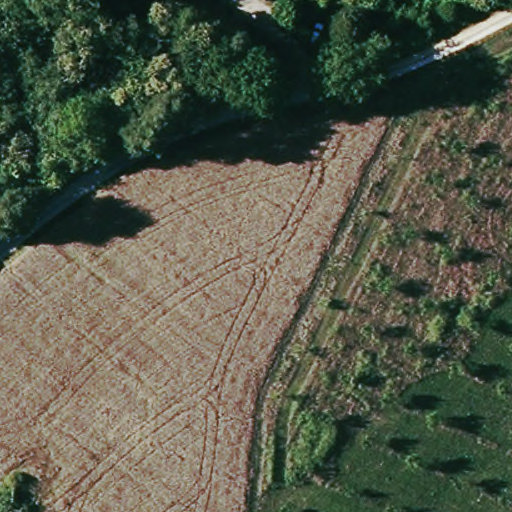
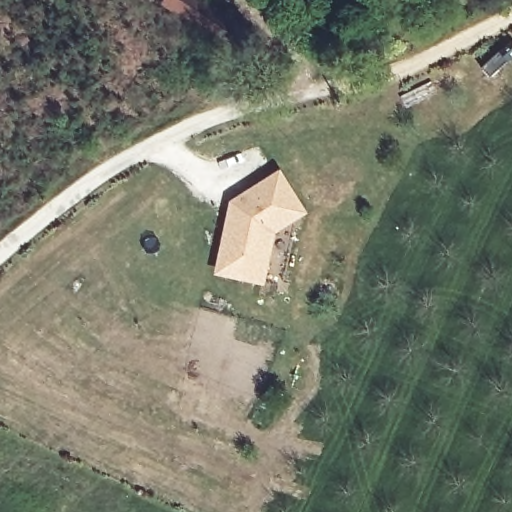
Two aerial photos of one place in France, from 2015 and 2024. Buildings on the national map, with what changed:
unchanged [(222,0),(255,25),(239,45),(181,0),(222,0)]
new [(230,203),(280,170),(309,214),(276,234),(265,286),(215,276),(230,203)]

